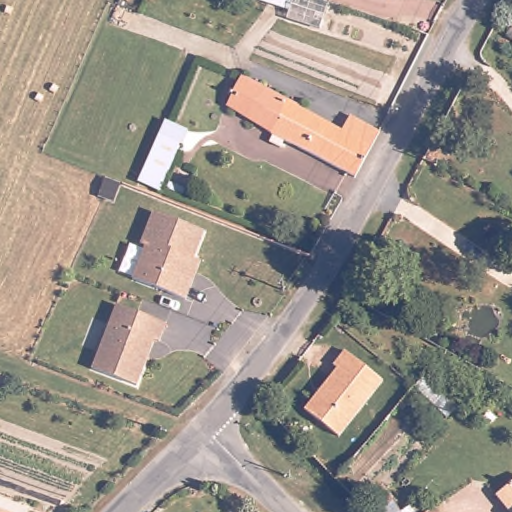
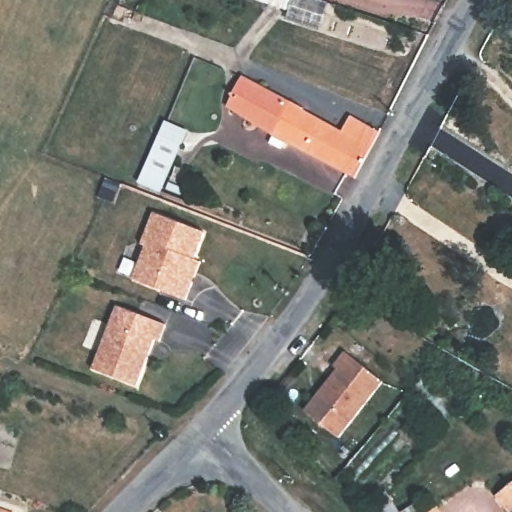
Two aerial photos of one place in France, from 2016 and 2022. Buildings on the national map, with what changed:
unchanged [(290,10),(258,0),(319,0),(328,3),(320,29),(287,19),(290,10)]
unchanged [(274,137),(278,130),(231,100),(247,71),(306,105),(308,102),(346,126),(355,111),(385,127),(360,173),(290,135),(285,143),(274,137)]
unchanged [(185,140),(165,186),(144,177),(165,131),(185,140)]
unchanged [(194,283),(187,301),(135,280),(147,247),(143,245),(155,213),(206,233),(196,260),(202,262),(194,283)]
unchanged [(167,325),(161,342),(156,340),(139,387),(94,370),(119,306),(167,325)]
unchanged [(344,432),(309,405),(342,363),(338,360),(349,346),(387,376),(344,432)]
unchanged [(512,482),(512,504),(501,490),(512,482)]
unchanged [(426,512),(377,512),(393,498),(402,511),(425,495),(433,507),(426,512)]
unchanged [(22,512),(0,512),(0,504),(22,512)]
unchanged [(433,507),(436,512),(426,512),(433,507)]

